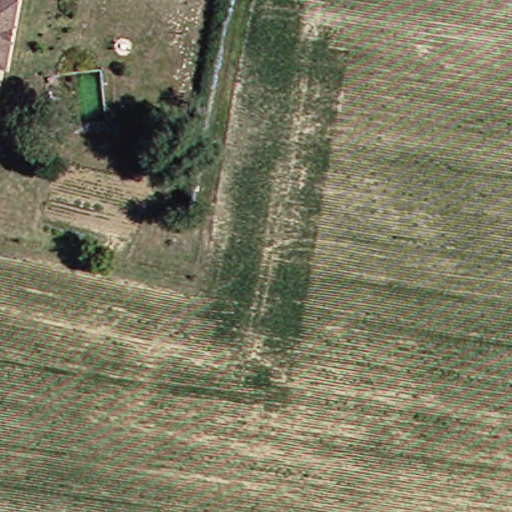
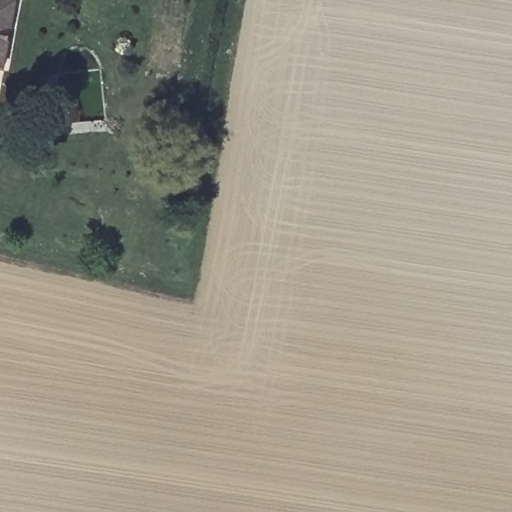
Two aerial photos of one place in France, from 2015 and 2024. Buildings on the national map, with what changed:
unchanged [(20,0),(9,70),(0,68),(0,0),(20,0)]

